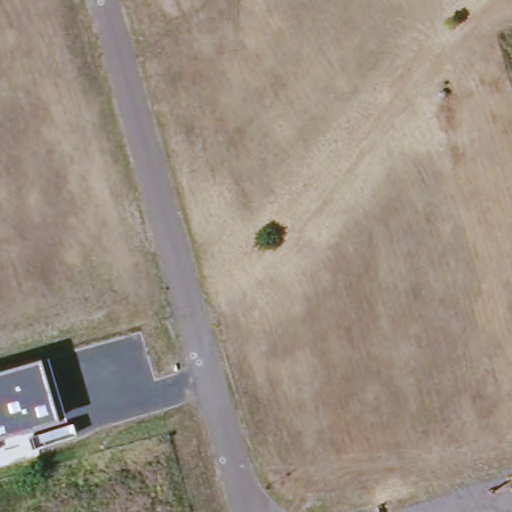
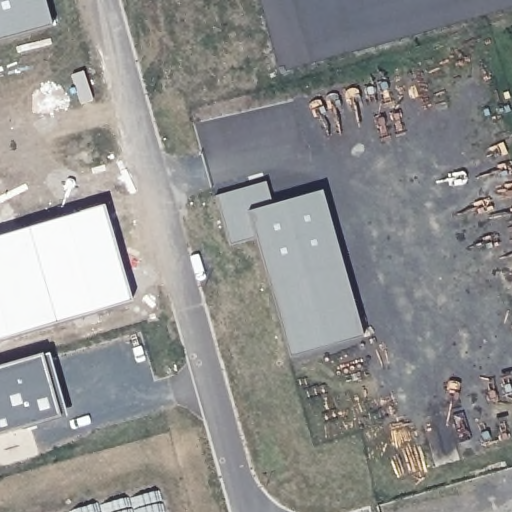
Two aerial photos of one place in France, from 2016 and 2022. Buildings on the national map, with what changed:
new [(0,42),(0,0),(42,0),(50,28),(0,42)]
new [(361,339),(287,361),(253,241),(227,248),(213,198),(263,184),(270,207),(320,193),(361,339)]
new [(0,345),(0,238),(108,204),(138,302),(0,345)]
unchanged [(66,416),(0,435),(0,367),(49,353),(66,416)]

